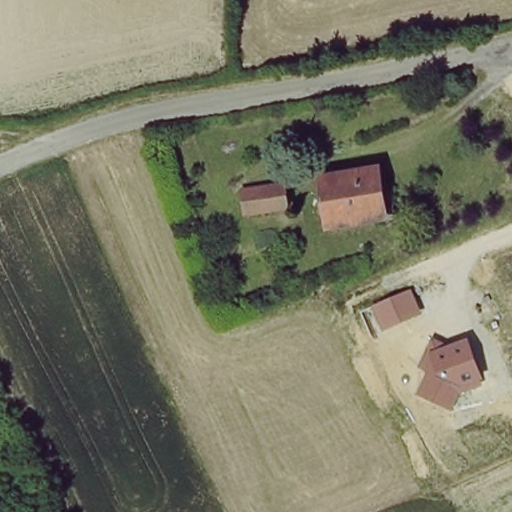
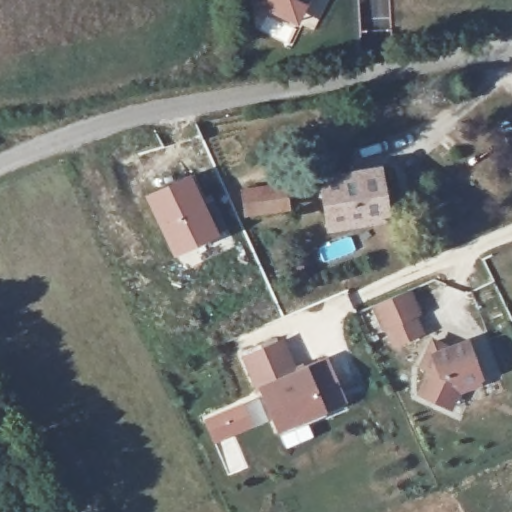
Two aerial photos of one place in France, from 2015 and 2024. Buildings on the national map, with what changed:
new [(249,0),(310,0),(297,27),(248,2),(249,0)]
unchanged [(329,227),(319,181),(373,170),(382,216),(329,227)]
new [(189,172),(219,233),(173,256),(144,196),(189,172)]
unchanged [(300,211),(252,220),(248,189),(294,182),(300,211)]
unchanged [(421,314),(382,331),(373,307),(411,291),(421,314)]
new [(345,401),(325,411),(277,431),(258,388),(255,390),(240,355),(282,338),(295,368),(305,363),(326,357),(345,401)]
unchanged [(483,383),(459,393),(451,410),(416,395),(427,372),(418,367),(431,338),(448,347),(467,338),(483,383)]

